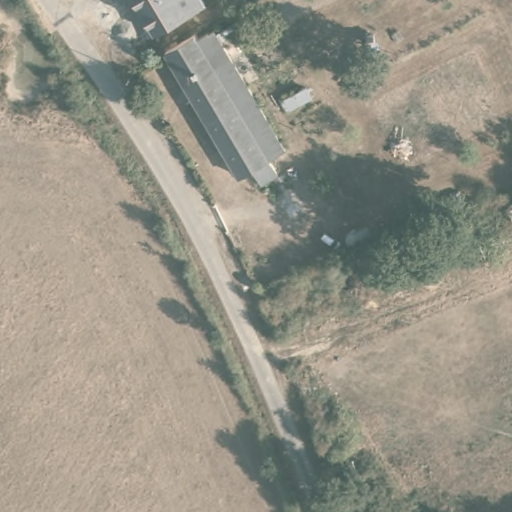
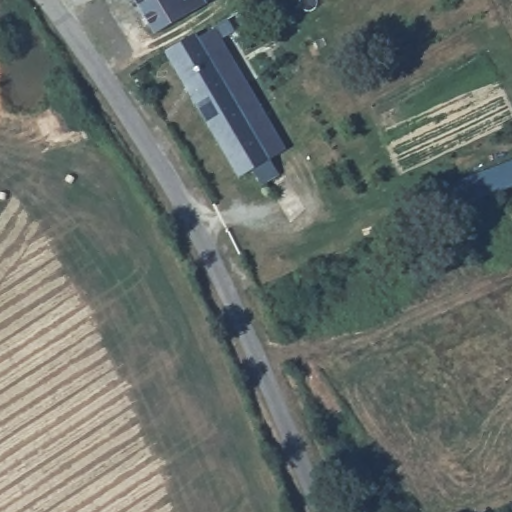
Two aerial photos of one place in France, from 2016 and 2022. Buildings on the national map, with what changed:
unchanged [(285,151),(271,160),(280,174),(263,184),(252,172),(241,179),(167,54),(136,0),(192,0),(182,7),(197,30),(199,29),(202,27),(206,27),(209,29),(211,31),(212,35),(221,34),(231,51),(228,53),(285,151)]
new [(467,205),(457,182),(512,160),(512,187),(467,205)]

